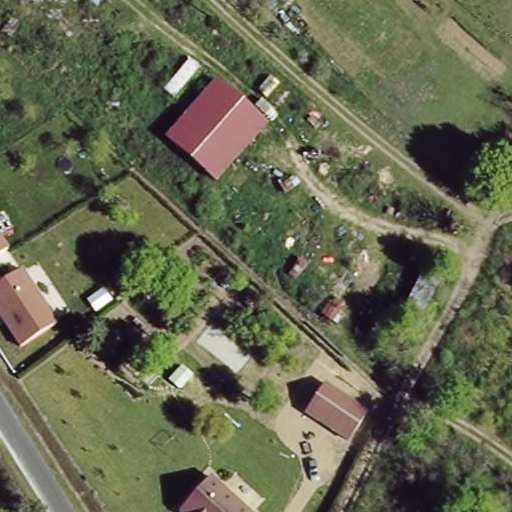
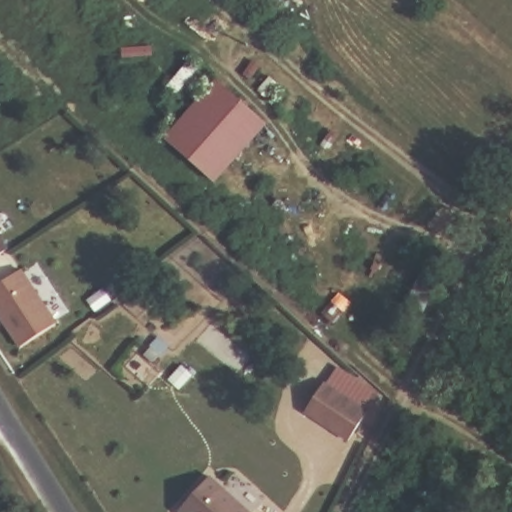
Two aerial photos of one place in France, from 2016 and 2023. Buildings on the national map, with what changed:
unchanged [(258,0),(285,0),(273,14),(258,0)]
unchanged [(215,80),(265,128),(211,184),(164,135),(215,80)]
unchanged [(0,249),(0,234),(6,245),(0,249)]
unchanged [(55,321),(18,345),(0,316),(0,281),(21,267),(55,321)]
unchanged [(181,364),(193,375),(178,390),(167,379),(181,364)]
unchanged [(325,381),(369,410),(347,442),(304,414),(325,381)]
unchanged [(213,475),(250,512),(179,512),(213,475)]

